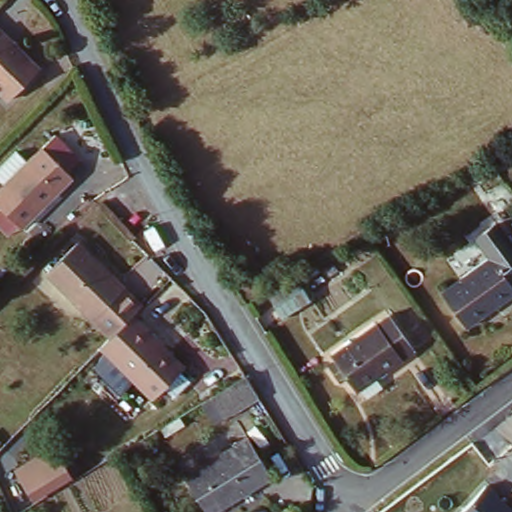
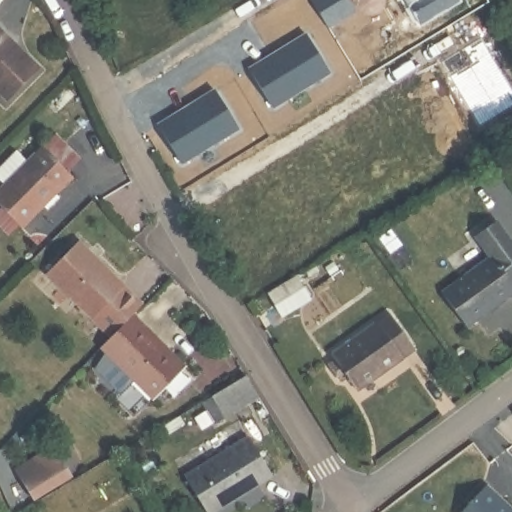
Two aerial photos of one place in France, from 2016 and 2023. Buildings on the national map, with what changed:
new [(328,27),(312,0),(351,0),(357,10),(328,27)]
new [(422,26),(410,8),(418,3),(416,0),(462,0),(462,1),(422,26)]
unchanged [(43,70),(10,104),(0,94),(0,30),(43,70)]
new [(305,32),(330,73),(272,108),(247,69),(305,32)]
new [(215,89),(239,130),(180,164),(156,125),(215,89)]
unchanged [(0,213),(0,184),(37,144),(45,149),(60,132),(85,156),(69,173),(75,180),(20,233),(0,213)]
unchanged [(512,280),(512,289),(466,321),(441,286),(489,253),(475,233),(495,218),(512,242),(512,278),(511,279),(512,280)]
unchanged [(50,278),(82,245),(140,304),(132,311),(107,337),(50,278)]
new [(293,275),(309,300),(279,319),(265,293),(293,275)]
unchanged [(186,368),(156,398),(100,344),(107,337),(132,311),(186,368)]
unchanged [(406,353),(361,385),(350,371),(335,382),(325,365),(340,355),(336,350),(380,319),(386,328),(400,318),(418,344),(406,353)]
unchanged [(214,421),(199,397),(230,375),(245,400),(214,421)]
unchanged [(183,478),(249,433),(276,470),(213,512),(205,512),(183,478)]
new [(51,446),(72,477),(32,502),(14,469),(51,446)]
unchanged [(485,483),(512,508),(512,512),(459,512),(485,483)]

